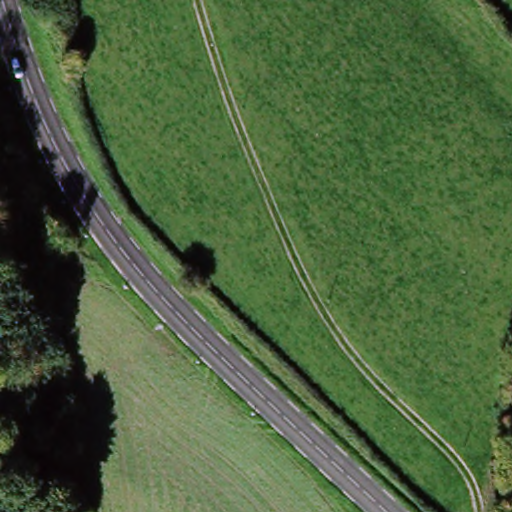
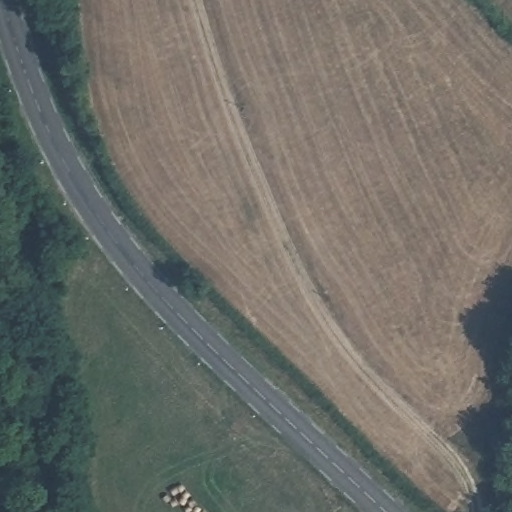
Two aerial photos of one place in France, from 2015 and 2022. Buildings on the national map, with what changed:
[]

